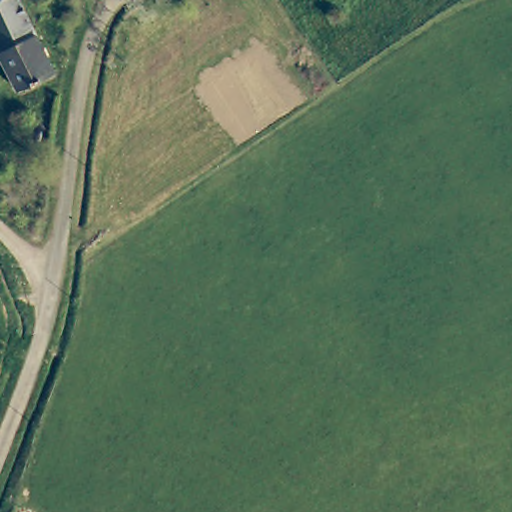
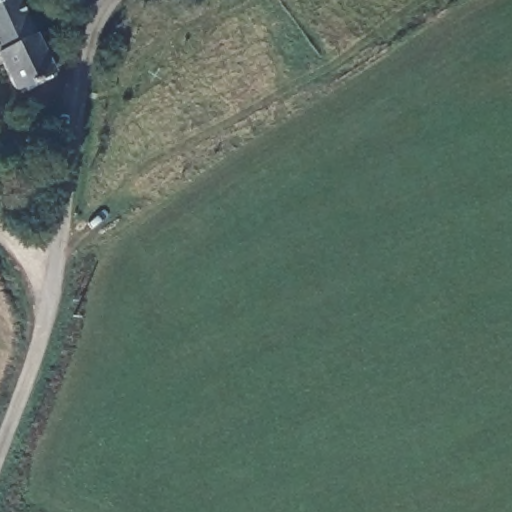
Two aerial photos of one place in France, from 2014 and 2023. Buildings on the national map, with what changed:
unchanged [(0,51),(0,0),(21,0),(55,68),(19,87),(0,51)]

